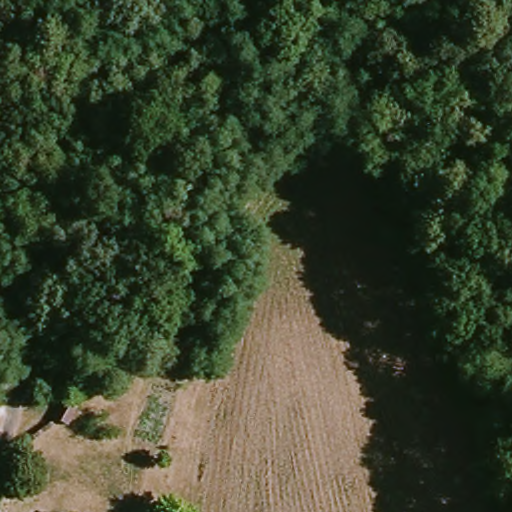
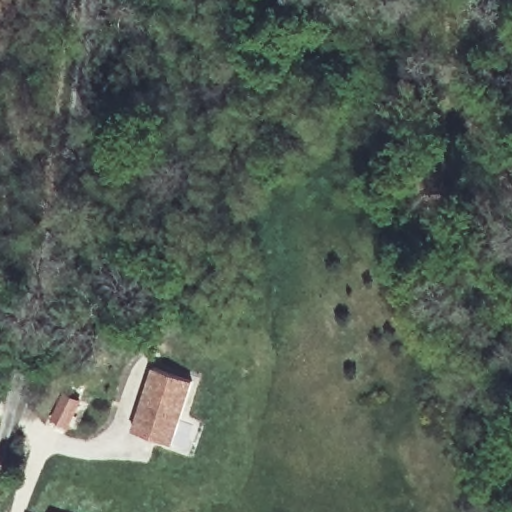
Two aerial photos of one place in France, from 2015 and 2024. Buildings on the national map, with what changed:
new [(158,368),(197,381),(177,444),(143,433),(138,432),(146,405),(158,368)]

